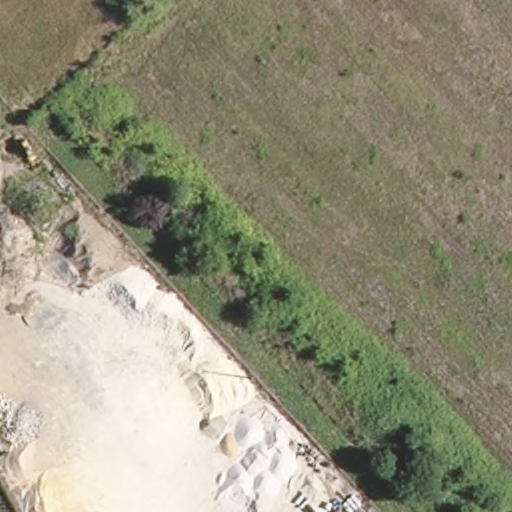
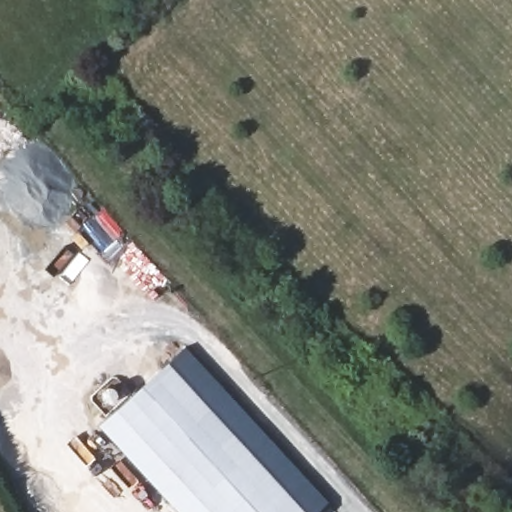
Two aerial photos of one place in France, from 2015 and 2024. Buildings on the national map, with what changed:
new [(316,512),(177,512),(98,427),(185,347),(327,502),(316,512)]

